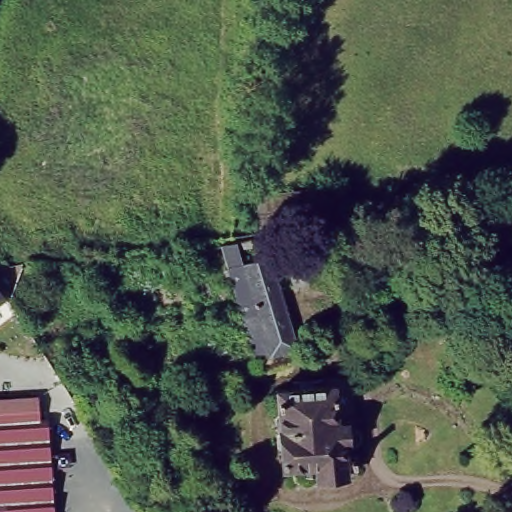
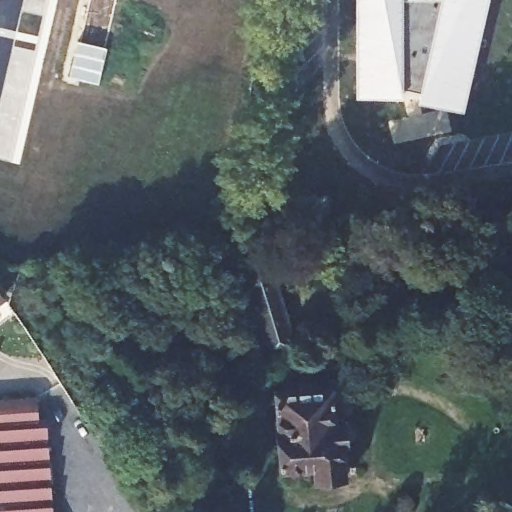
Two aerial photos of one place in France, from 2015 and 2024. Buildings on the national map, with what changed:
new [(464,110),(417,100),(420,90),(407,87),(404,87),(403,96),(356,95),(356,0),(489,0),(464,110)]
unchanged [(233,238),(240,260),(242,260),(242,258),(269,251),(297,342),(255,355),(222,242),(233,238)]
unchanged [(0,296),(0,290),(3,294),(0,296)]
unchanged [(303,466),(282,467),(279,428),(275,425),(274,417),(277,412),(276,390),(300,387),(320,387),(332,386),(335,417),(341,417),(347,422),(348,428),(343,434),(342,434),(344,448),(351,448),(353,472),(314,474),(304,475),(303,466)]
unchanged [(27,392),(35,391),(37,391),(38,414),(45,413),(47,413),(47,415),(53,512),(0,512),(0,394),(5,393),(27,392)]

